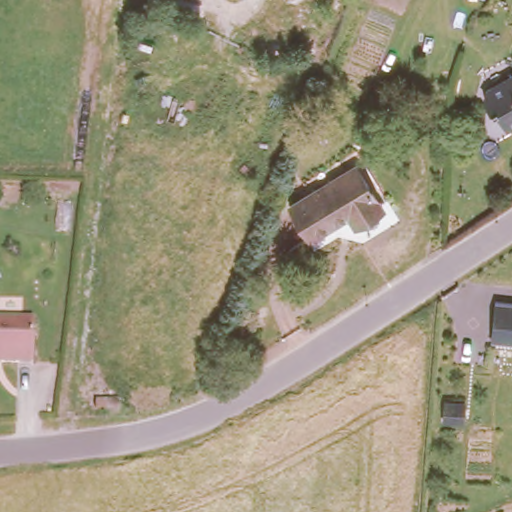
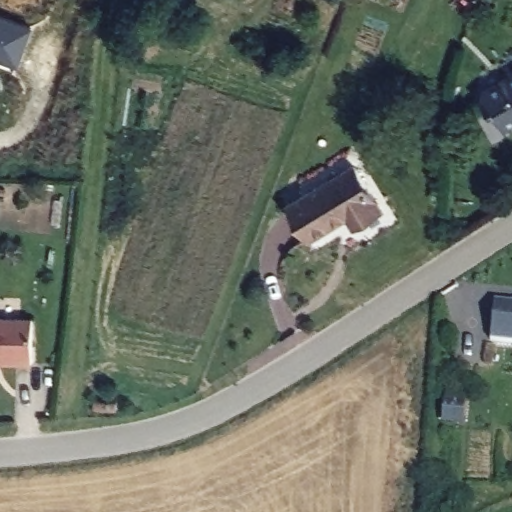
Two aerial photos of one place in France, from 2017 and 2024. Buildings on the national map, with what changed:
new [(0,54),(0,12),(33,27),(20,65),(0,54)]
unchanged [(495,121),(490,102),(485,104),(481,92),(478,82),(486,79),(512,71),(512,116),(495,121)]
unchanged [(356,231),(349,220),(344,213),(304,238),(285,204),(350,164),(375,203),(383,214),(356,231)]
unchanged [(491,339),(495,301),(512,303),(512,342),(491,339)]
unchanged [(31,365),(8,364),(8,359),(0,359),(0,319),(33,320),(31,365)]

